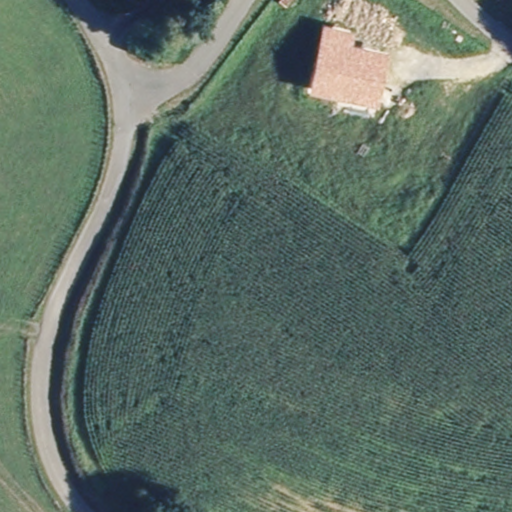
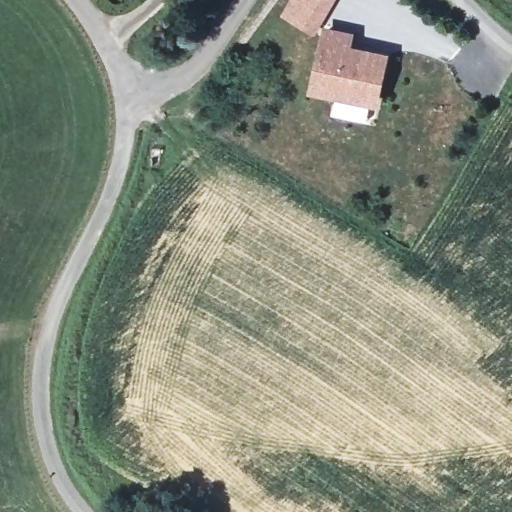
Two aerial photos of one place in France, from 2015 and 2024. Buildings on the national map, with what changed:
new [(281,16),(291,0),(335,0),(314,35),(281,16)]
unchanged [(355,32),(352,46),(389,53),(377,109),(309,94),(323,25),(355,32)]

